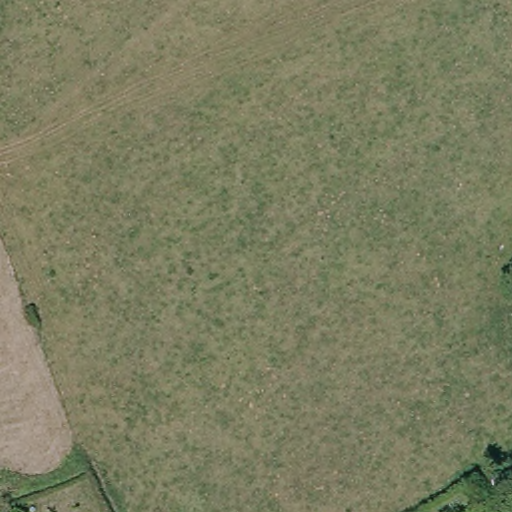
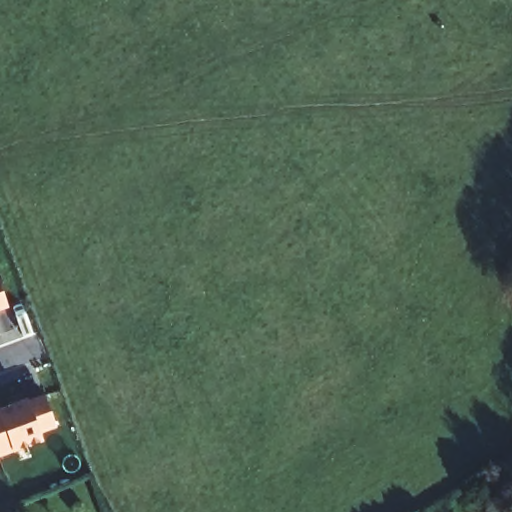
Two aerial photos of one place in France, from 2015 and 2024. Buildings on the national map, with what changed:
new [(9,308),(0,311),(0,283),(9,308)]
new [(0,456),(0,408),(42,393),(55,429),(40,434),(12,452),(0,456)]

